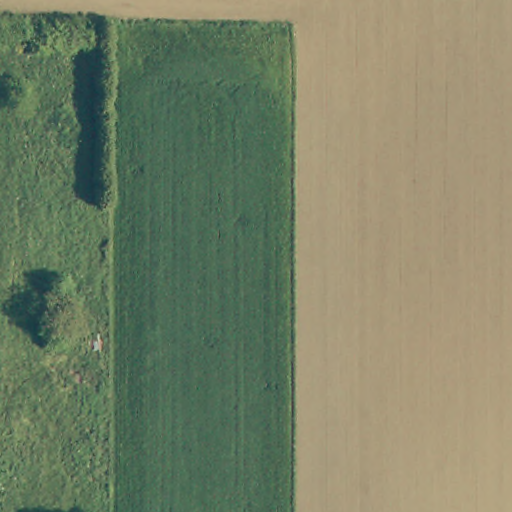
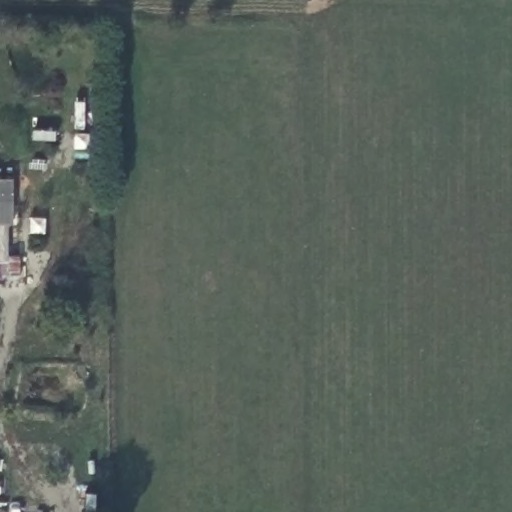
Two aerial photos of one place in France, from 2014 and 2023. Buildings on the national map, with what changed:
new [(14,181),(12,225),(7,225),(7,235),(0,234),(0,181),(14,181)]

